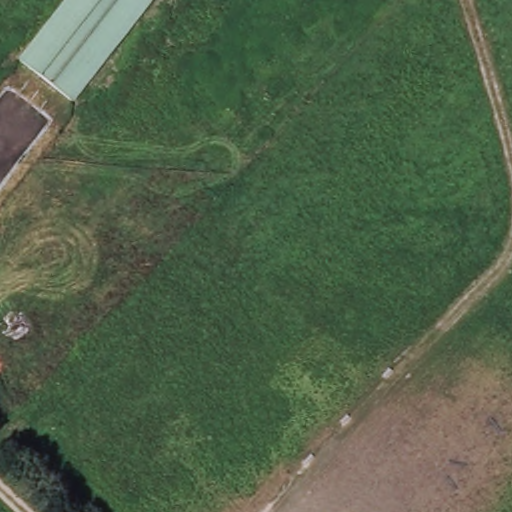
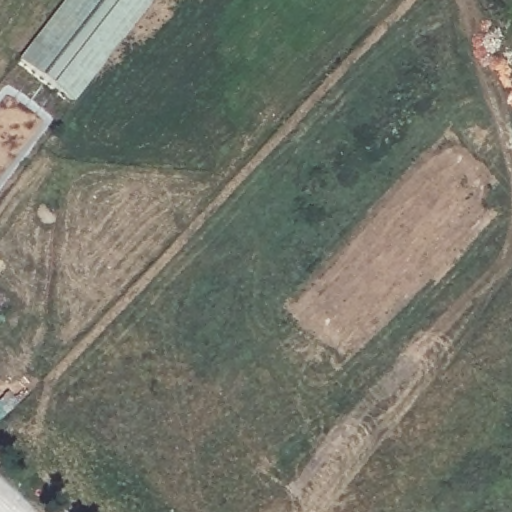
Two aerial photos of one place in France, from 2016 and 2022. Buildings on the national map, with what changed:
unchanged [(76,0),(157,0),(75,103),(25,64),(76,0)]

